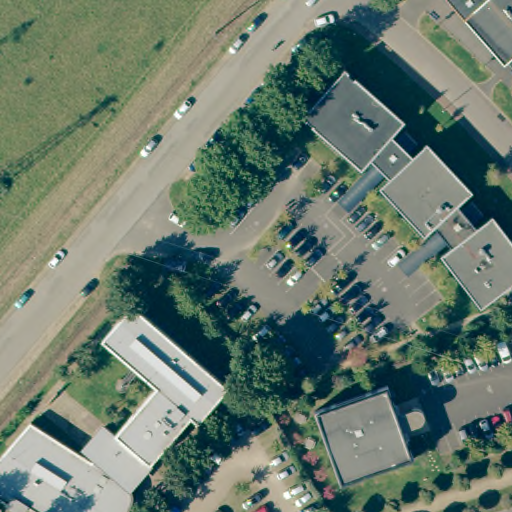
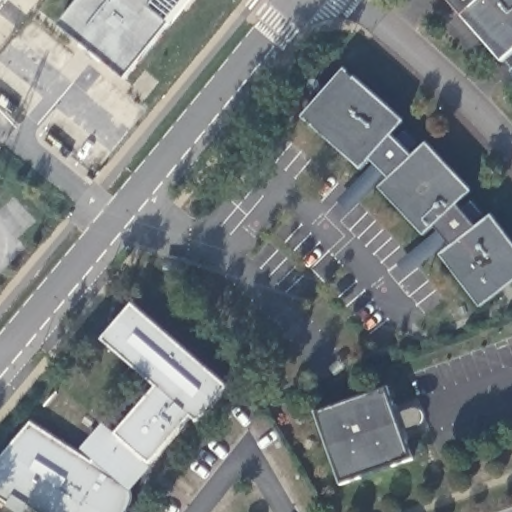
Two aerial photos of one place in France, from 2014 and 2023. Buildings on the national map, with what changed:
new [(78,0),(190,0),(171,23),(125,80),(58,25),(78,0)]
unchanged [(502,61),(447,0),(512,0),(512,52),(502,61)]
unchanged [(512,66),(512,72),(509,69),(512,66)]
unchanged [(303,117),(344,69),(404,121),(391,137),(396,141),(403,132),(414,143),(407,151),(413,158),(390,180),(369,158),(360,169),(303,117)]
unchanged [(399,265),(439,233),(436,230),(426,239),(380,189),(428,144),(474,194),(460,207),(464,212),(474,204),(484,217),(475,225),(479,230),(494,218),(512,241),(512,289),(482,311),(442,257),(453,249),(450,245),(409,279),(399,265)]
unchanged [(97,457),(87,449),(108,425),(118,434),(158,387),(104,339),(135,303),(231,388),(200,423),(193,418),(152,465),(145,458),(125,480),(132,486),(133,487),(134,488),(134,489),(135,491),(135,492),(136,494),(136,495),(136,496),(136,497),(136,499),(135,502),(135,504),(135,506),(133,509),(132,511),(132,512),(39,512),(17,498),(12,505),(0,497),(0,459),(33,421),(94,460),(97,457)]
unchanged [(393,388),(400,408),(394,410),(407,443),(412,441),(420,461),(347,488),(320,415),(393,388)]

